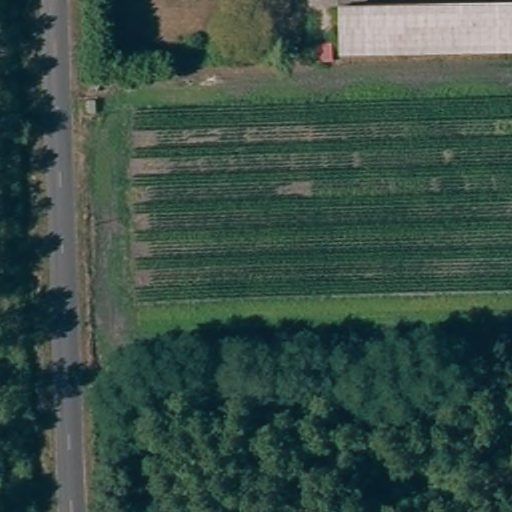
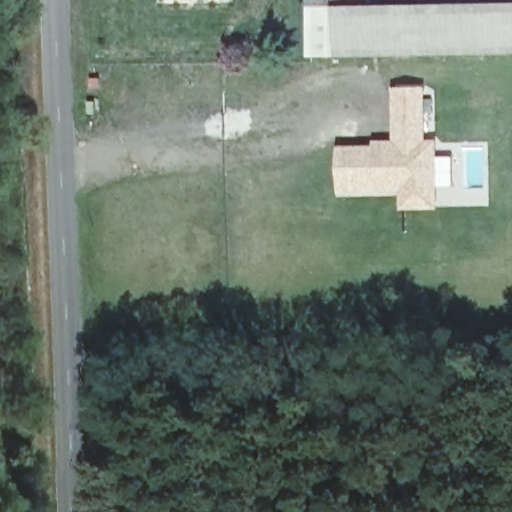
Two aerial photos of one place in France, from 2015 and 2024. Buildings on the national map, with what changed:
unchanged [(307,7),(307,0),(356,0),(356,6),(307,7)]
unchanged [(512,3),(512,53),(338,57),(338,7),(365,7),(512,3)]
new [(426,86),(427,139),(439,139),(440,209),(402,209),(402,192),(340,193),(339,146),(375,146),(375,140),(395,140),(393,87),(426,86)]

